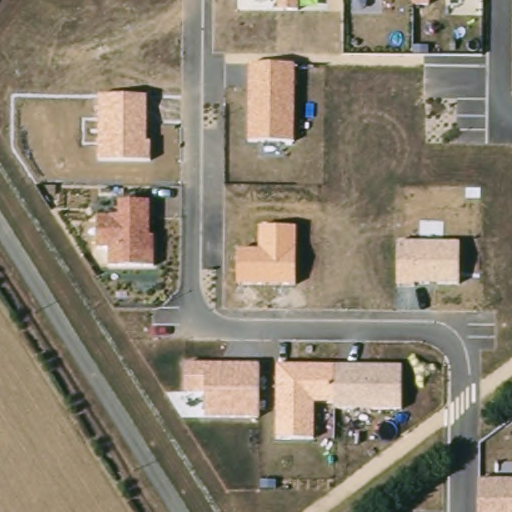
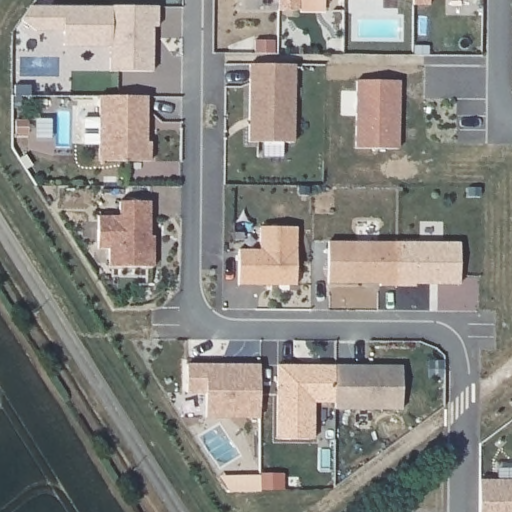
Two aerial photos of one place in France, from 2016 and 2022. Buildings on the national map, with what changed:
unchanged [(278,9),(278,0),(300,0),(300,10),(278,9)]
unchanged [(416,10),(415,0),(431,0),(431,10),(416,10)]
new [(110,46),(63,46),(62,31),(37,31),(22,21),(31,6),(157,5),(157,25),(152,25),(151,70),(111,71),(110,46)]
unchanged [(250,66),(295,69),(294,144),(249,145),(250,66)]
new [(357,82),(400,82),(399,150),(356,150),(357,82)]
unchanged [(149,96),(147,141),(152,141),(152,163),(98,161),(99,98),(149,96)]
unchanged [(150,201),(151,236),(155,236),(154,269),(110,268),(110,249),(100,249),(100,215),(120,214),(121,203),(150,201)]
unchanged [(298,226),(297,288),(239,287),(237,250),(260,253),(260,227),(298,226)]
new [(397,287),(327,283),(328,241),(397,241),(397,287)]
unchanged [(462,286),(397,287),(397,241),(459,243),(462,286)]
unchanged [(260,365),(260,418),(206,417),(205,395),(186,395),(187,364),(260,365)]
unchanged [(336,402),(315,402),(314,440),(277,439),(278,368),(336,366),(336,402)]
unchanged [(402,366),(402,412),(336,410),(336,402),(336,366),(402,366)]
unchanged [(512,480),(512,512),(480,512),(480,479),(512,480)]

